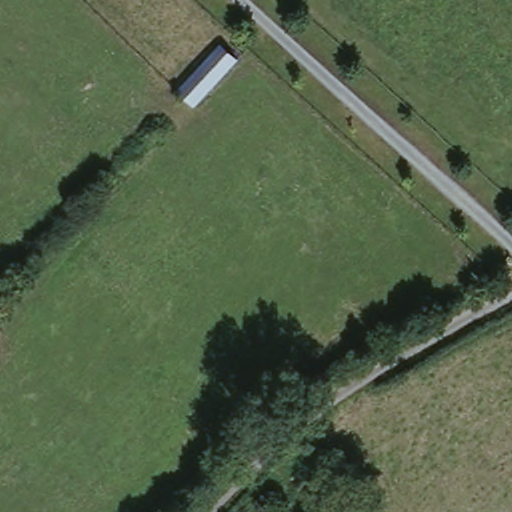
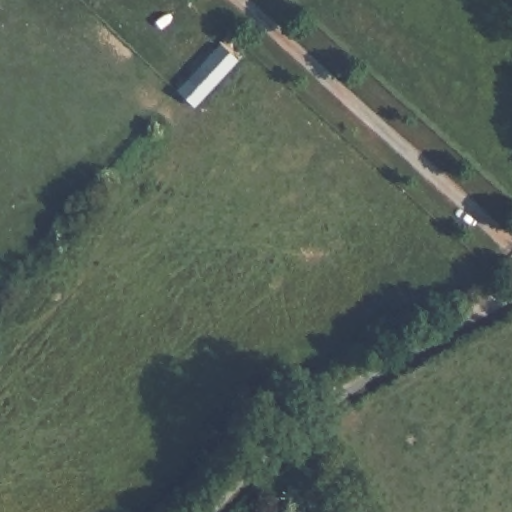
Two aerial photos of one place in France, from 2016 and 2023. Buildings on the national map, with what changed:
unchanged [(241,62),(196,109),(189,102),(181,95),(225,49),(241,62)]

